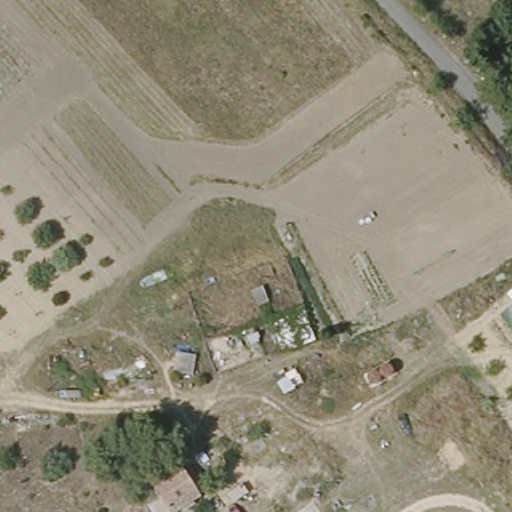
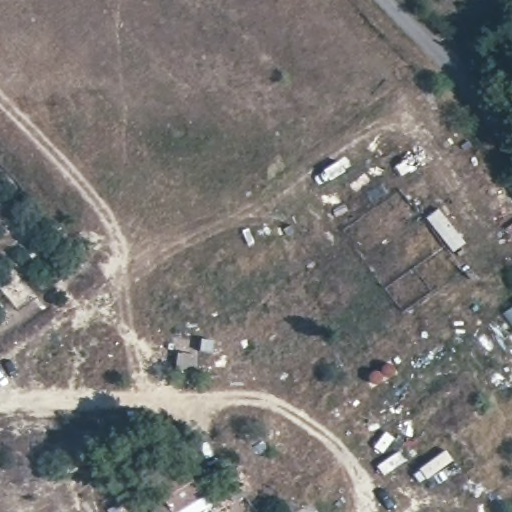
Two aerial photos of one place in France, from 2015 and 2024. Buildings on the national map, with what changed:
unchanged [(202,496),(178,512),(172,512),(150,481),(181,462),(202,496)]

